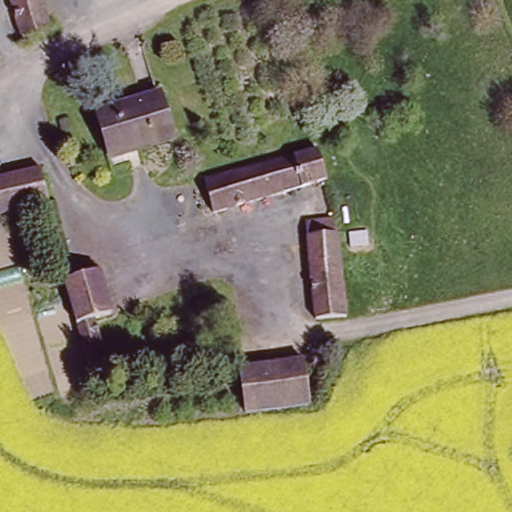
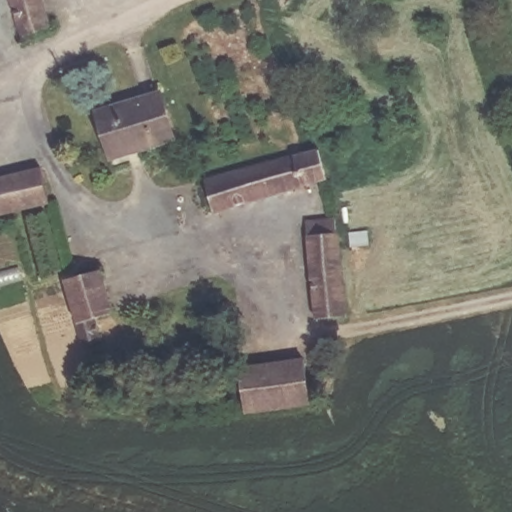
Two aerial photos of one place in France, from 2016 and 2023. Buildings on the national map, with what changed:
unchanged [(11,0),(45,0),(52,18),(23,29),(11,0)]
unchanged [(119,154),(118,146),(93,154),(83,116),(166,93),(179,138),(119,154)]
unchanged [(206,213),(196,181),(316,148),(324,180),(206,213)]
unchanged [(40,165),(50,197),(0,213),(0,178),(40,165)]
unchanged [(343,314),(311,315),(308,217),(339,216),(343,314)]
unchanged [(66,275),(104,266),(114,309),(98,313),(104,338),(98,340),(107,381),(93,384),(66,275)]
unchanged [(308,373),(310,398),(248,413),(238,370),(306,355),(308,373)]

